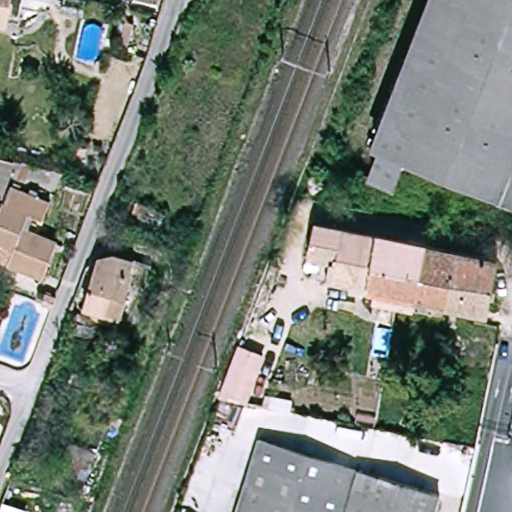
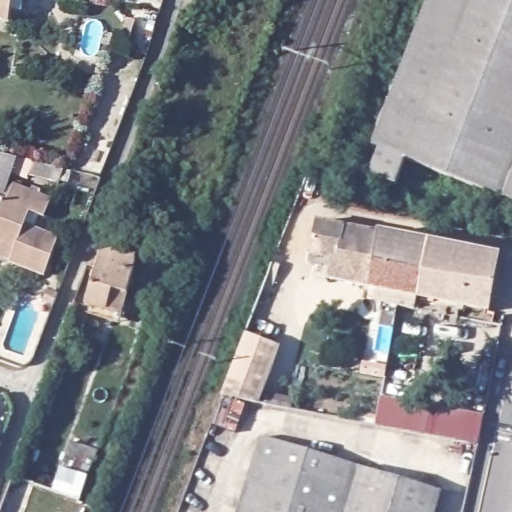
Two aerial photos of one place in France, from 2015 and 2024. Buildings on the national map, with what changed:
unchanged [(0,21),(0,0),(16,0),(12,23),(0,21)]
unchanged [(395,182),(375,174),(441,0),(512,0),(512,199),(407,156),(395,182)]
unchanged [(22,155),(68,164),(62,182),(14,172),(4,195),(0,194),(0,150),(22,155)]
unchanged [(9,202),(16,185),(54,200),(46,219),(31,214),(26,227),(59,240),(46,276),(11,263),(13,259),(0,254),(0,198),(9,202)]
unchanged [(430,242),(504,255),(494,308),(424,295),(333,276),(336,258),(315,254),(321,221),(430,242)]
unchanged [(138,253),(119,310),(86,299),(105,250),(116,247),(138,253)]
unchanged [(238,344),(265,354),(245,403),(233,429),(213,425),(219,397),(238,344)]
new [(380,398),(484,416),(479,444),(374,426),(380,398)]
unchanged [(445,489),(438,512),(226,512),(228,504),(243,509),(264,434),(445,489)]
unchanged [(97,450),(89,471),(64,461),(71,441),(97,450)]

